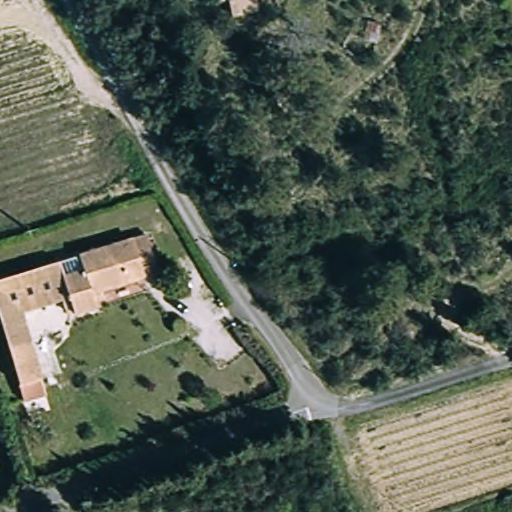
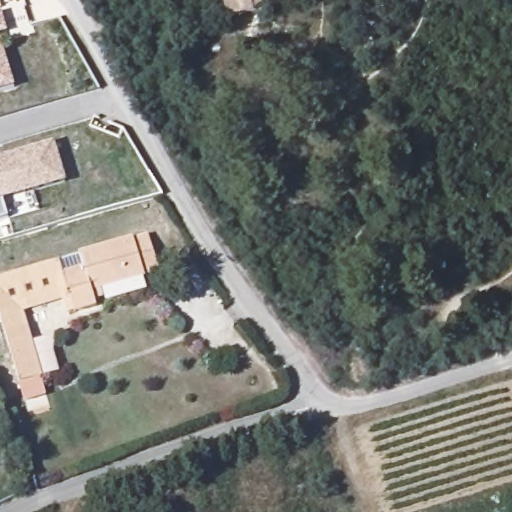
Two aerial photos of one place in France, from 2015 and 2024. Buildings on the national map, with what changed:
unchanged [(220,7),(218,0),(247,0),(247,1),(220,7)]
new [(1,12),(8,34),(0,37),(0,13),(1,12)]
unchanged [(361,40),(362,39),(366,20),(379,23),(376,37),(375,43),(361,40)]
new [(15,87),(0,92),(0,41),(15,87)]
new [(54,144),(64,181),(1,201),(7,220),(0,222),(0,160),(54,144)]
unchanged [(74,308),(67,310),(62,295),(22,307),(42,374),(41,374),(46,391),(24,397),(0,315),(0,275),(147,231),(158,268),(101,285),(105,295),(95,298),(97,301),(74,308)]

